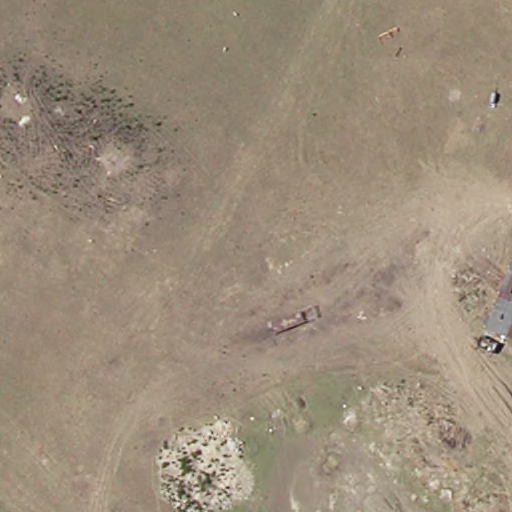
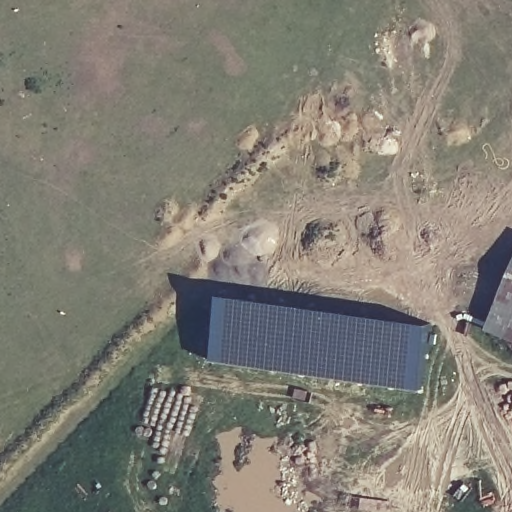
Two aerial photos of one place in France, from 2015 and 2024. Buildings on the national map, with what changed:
unchanged [(512,273),(512,334),(489,325),(512,273)]
new [(425,388),(215,357),(223,292),(433,322),(425,388)]

